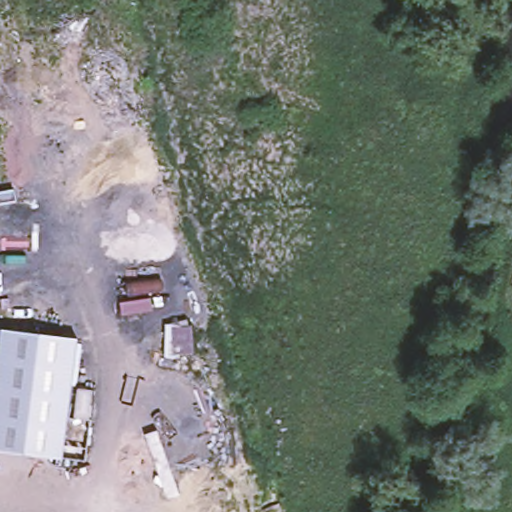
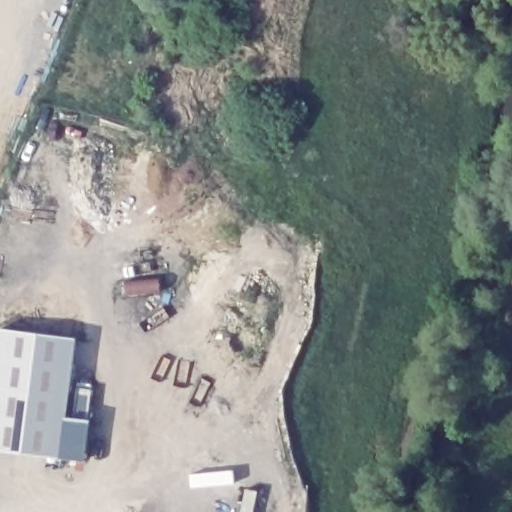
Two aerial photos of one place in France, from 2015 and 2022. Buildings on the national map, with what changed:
unchanged [(0,328),(79,340),(63,460),(0,451),(0,332),(0,328)]

